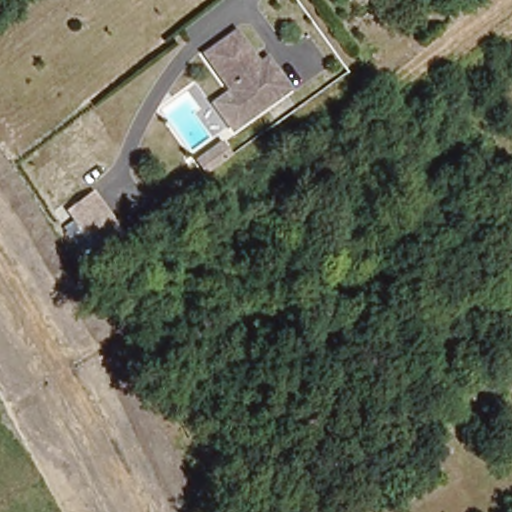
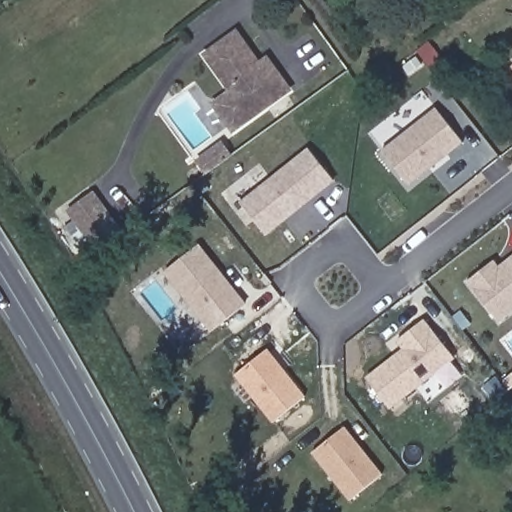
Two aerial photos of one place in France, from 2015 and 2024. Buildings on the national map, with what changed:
unchanged [(268,60),(291,89),(253,120),(219,76),(206,61),(234,37),(249,54),(259,67),(268,60)]
new [(435,111),(462,146),(408,188),(381,153),(435,111)]
unchanged [(235,156),(206,176),(197,163),(224,144),(235,156)]
new [(309,148),(334,180),(266,233),(241,201),(309,148)]
unchanged [(126,236),(89,260),(60,213),(94,191),(126,236)]
new [(201,244),(246,304),(213,329),(168,269),(201,244)]
new [(512,254),(512,310),(498,320),(467,279),(493,258),(498,265),(512,254)]
new [(405,348),(398,339),(424,319),(453,357),(389,406),(366,378),(405,348)]
new [(267,346),(304,393),(272,419),(234,372),(267,346)]
new [(343,425),(381,472),(349,498),(311,450),(343,425)]

